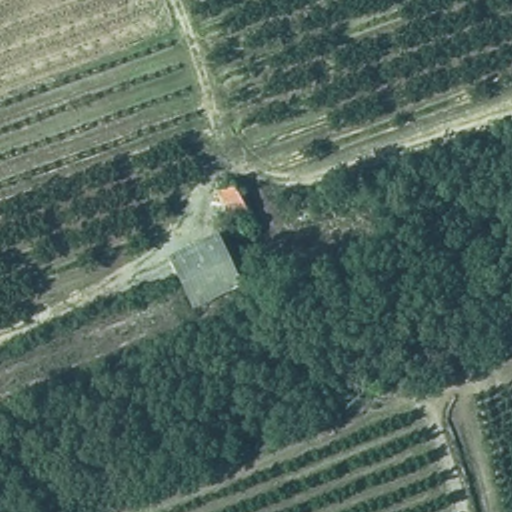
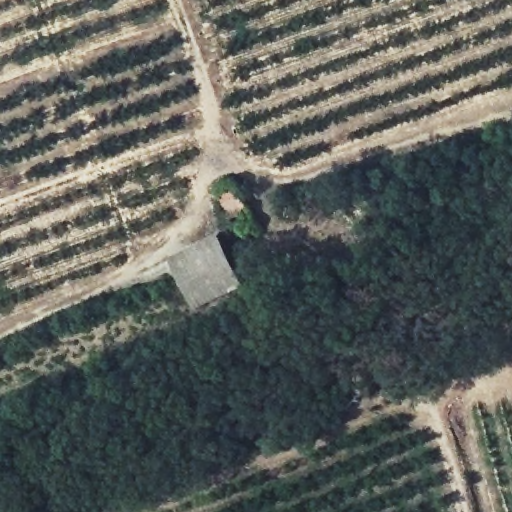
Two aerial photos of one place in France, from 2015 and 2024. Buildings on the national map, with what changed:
unchanged [(219,233),(245,284),(195,307),(172,255),(219,233)]

